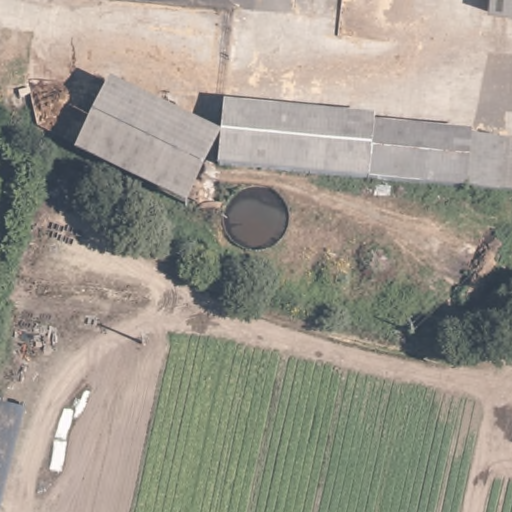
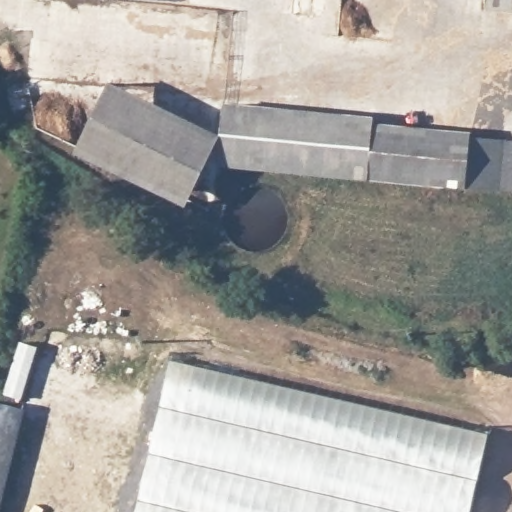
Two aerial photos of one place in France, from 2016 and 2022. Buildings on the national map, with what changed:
unchanged [(489,9),(490,0),(512,0),(512,12),(489,9)]
unchanged [(134,169),(78,133),(118,73),(175,110),(220,140),(182,198),(134,169)]
unchanged [(378,124),(378,129),(472,138),(473,143),(512,146),(512,194),(225,173),(228,110),(378,124)]
new [(171,360),(491,434),(473,512),(136,512),(171,360)]

